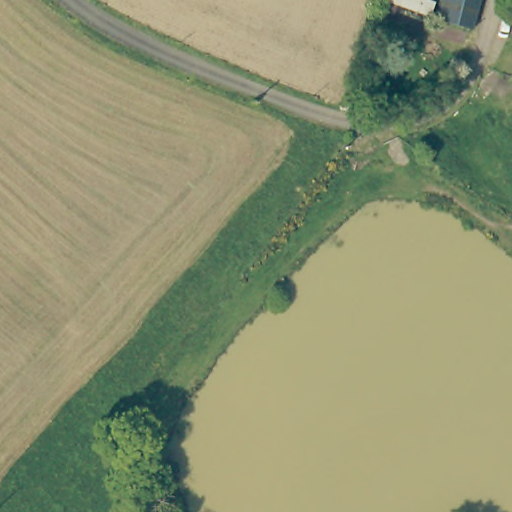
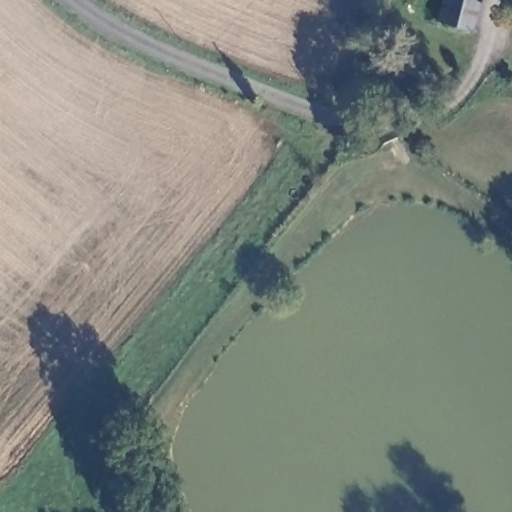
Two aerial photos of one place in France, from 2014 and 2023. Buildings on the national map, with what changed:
unchanged [(472,29),(437,20),(442,0),(480,0),(472,29)]

